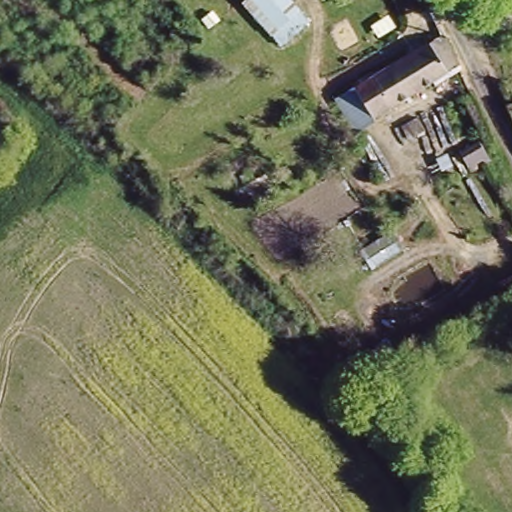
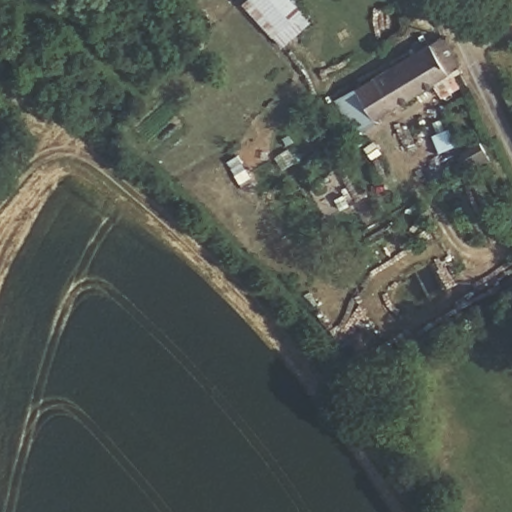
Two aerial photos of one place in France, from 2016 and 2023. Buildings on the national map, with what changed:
unchanged [(246,0),(292,0),(310,21),(280,47),(243,3),(246,0)]
unchanged [(443,42),(460,70),(353,131),(338,103),(443,42)]
unchanged [(478,142),(490,161),(472,171),(462,152),(478,142)]

